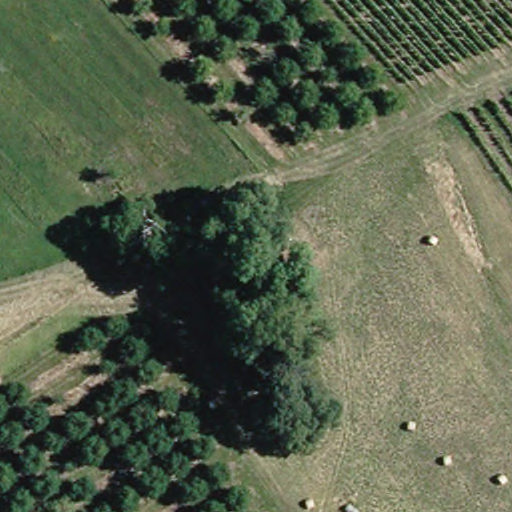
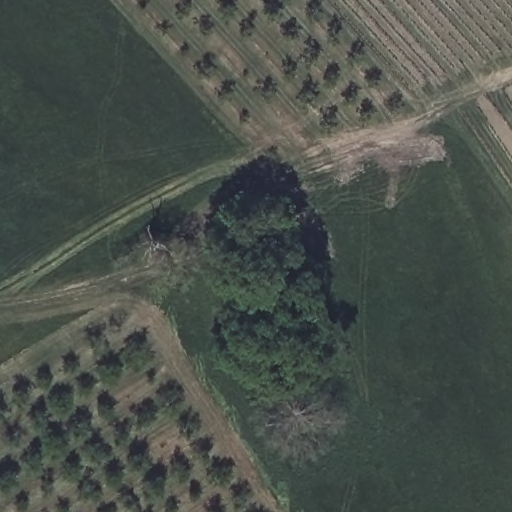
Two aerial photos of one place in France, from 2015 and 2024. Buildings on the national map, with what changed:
[]

